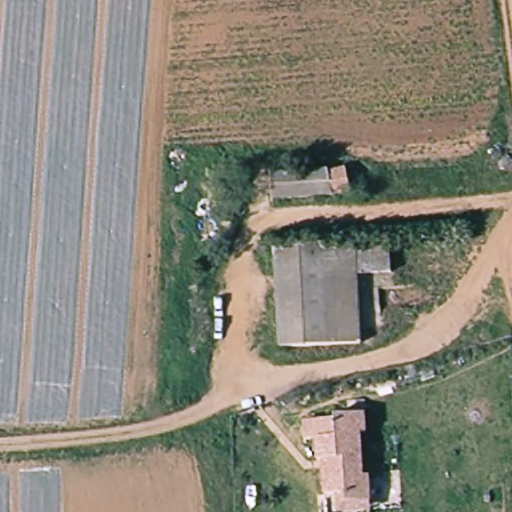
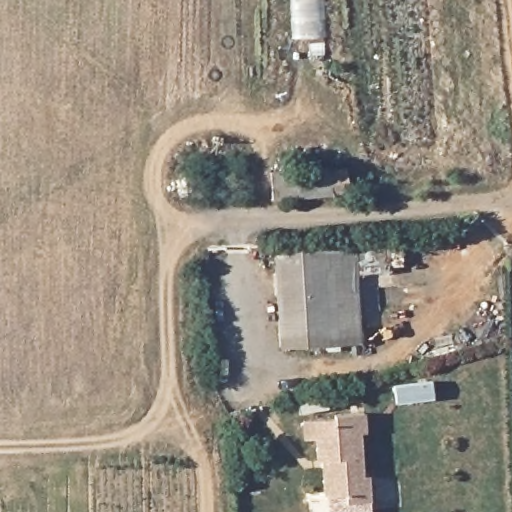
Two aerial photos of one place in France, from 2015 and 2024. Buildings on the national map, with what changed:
new [(293,40),(290,0),(324,0),(326,38),(293,40)]
unchanged [(346,202),(271,203),(269,175),(346,171),(346,202)]
unchanged [(391,239),(394,282),(361,289),(363,344),(280,349),(276,252),(391,239)]
unchanged [(368,475),(369,510),(347,511),(346,492),(321,492),(320,462),(315,462),(314,439),(301,439),(301,421),(328,421),(329,438),(335,438),(334,416),(364,415),(365,433),(360,433),(361,475),(368,475)]

